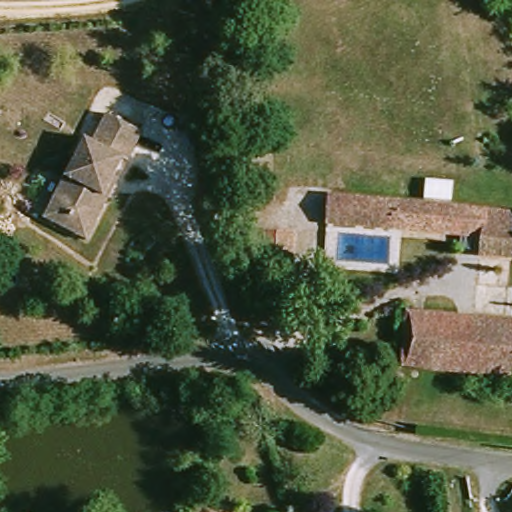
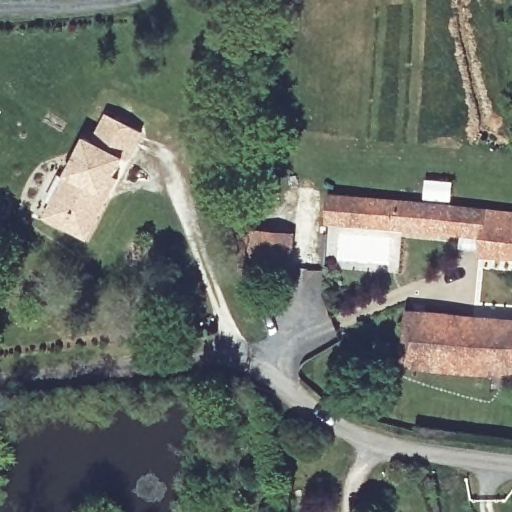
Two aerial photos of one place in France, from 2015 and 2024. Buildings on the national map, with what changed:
unchanged [(44,218),(51,205),(85,139),(93,143),(107,115),(142,133),(127,160),(122,157),(113,175),(117,177),(107,196),(92,225),(86,239),(44,218)]
unchanged [(328,229),(330,202),(396,207),(393,234),(328,229)]
unchanged [(512,219),(512,262),(481,258),(482,242),(393,234),(396,207),(512,219)]
unchanged [(242,231),(294,233),(291,270),(257,270),(242,231)]
unchanged [(408,316),(512,327),(512,380),(403,369),(408,316)]

